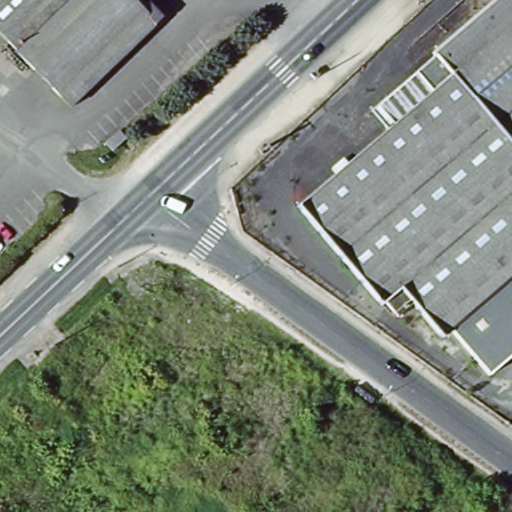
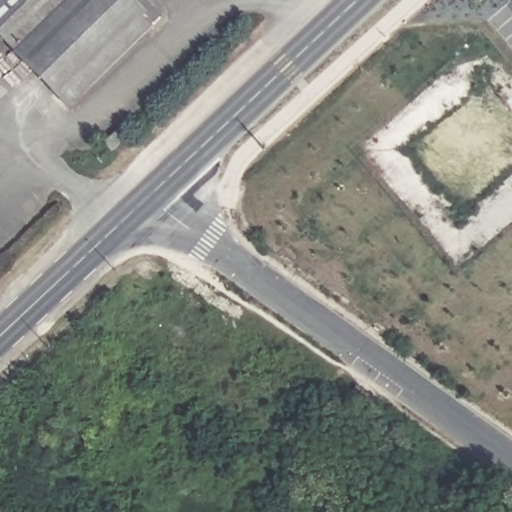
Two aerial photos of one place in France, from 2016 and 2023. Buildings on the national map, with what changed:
unchanged [(2,30),(0,29),(0,0),(33,0),(2,30)]
unchanged [(152,5),(62,92),(2,30),(33,0),(147,0),(152,5)]
demolished [(458,63),(457,58),(512,11),(512,353),(502,368),(473,335),(465,342),(438,309),(427,317),(328,203),(392,148),(377,133),(458,63)]
demolished [(424,320),(411,305),(407,308),(402,302),(363,254),(323,207),(328,203),(427,317),(424,320)]
demolished [(512,381),(502,368),(512,353),(512,381)]

